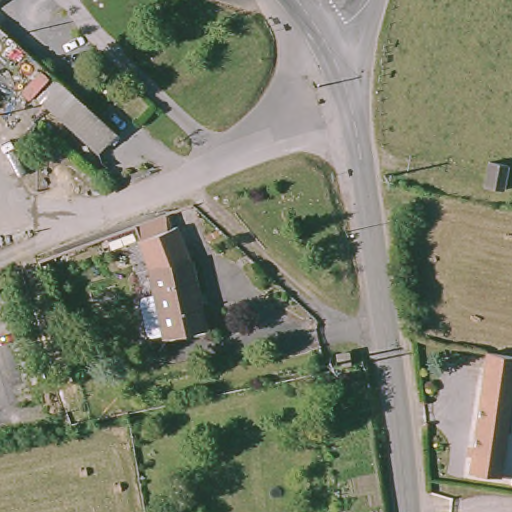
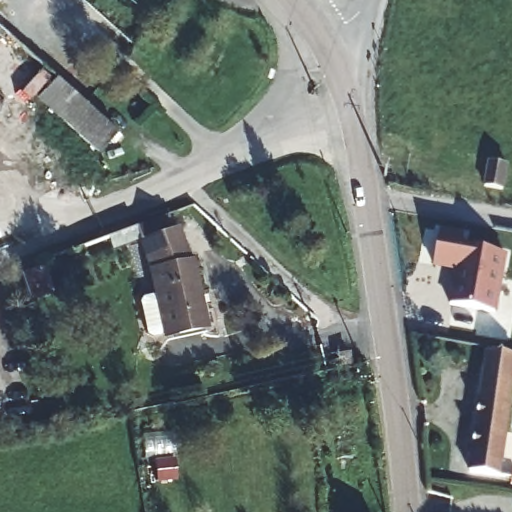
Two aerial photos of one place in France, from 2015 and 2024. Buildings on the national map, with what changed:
unchanged [(60,81),(118,133),(98,154),(41,102),(59,81),(60,81)]
new [(504,190),(483,186),(488,162),(509,165),(504,190)]
new [(464,233),(462,247),(508,255),(497,314),(448,305),(453,272),(433,269),(440,229),(464,233)]
unchanged [(205,327),(166,334),(163,334),(153,269),(194,261),(205,327)]
unchanged [(512,356),(512,385),(501,478),(468,474),(484,353),(512,356)]
unchanged [(330,368),(329,356),(341,355),(342,367),(330,368)]

